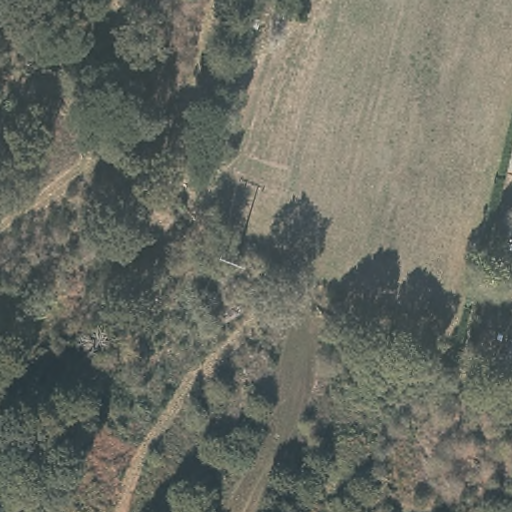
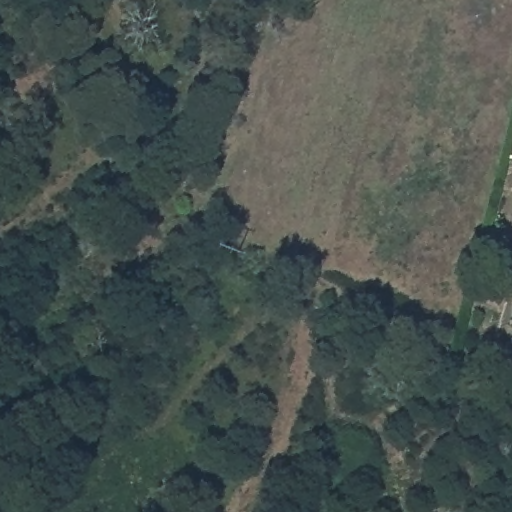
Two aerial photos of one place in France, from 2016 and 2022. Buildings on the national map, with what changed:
unchanged [(505,364),(512,339),(512,366),(505,364)]

